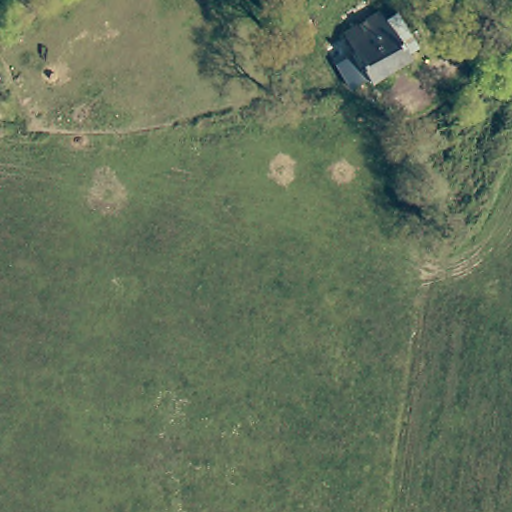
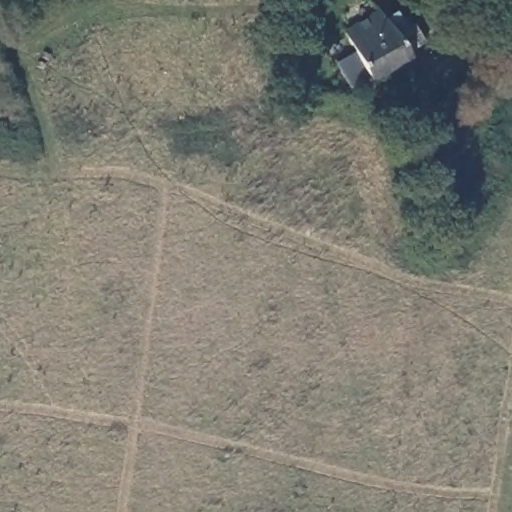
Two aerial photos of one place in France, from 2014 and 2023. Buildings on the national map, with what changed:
unchanged [(376,78),(346,31),(384,7),(414,54),(376,78)]

